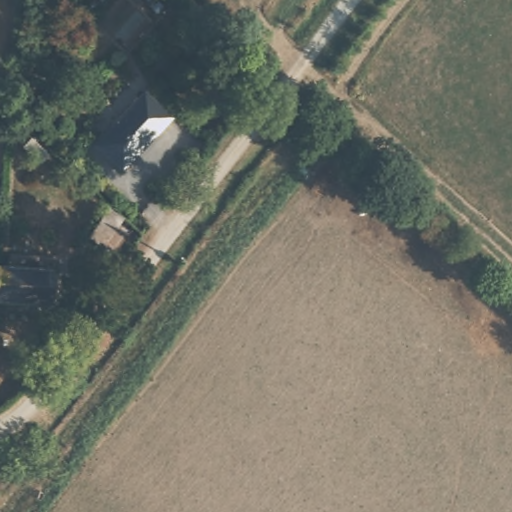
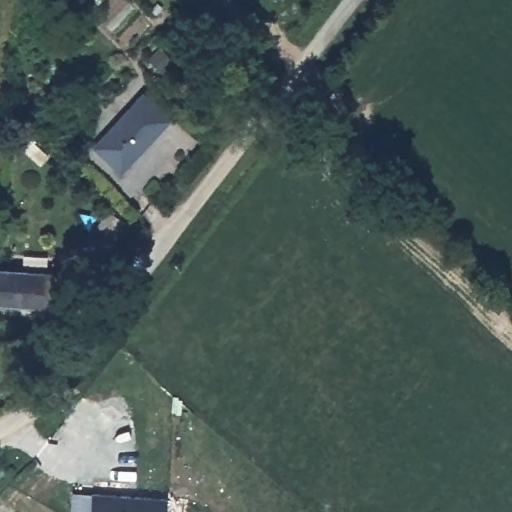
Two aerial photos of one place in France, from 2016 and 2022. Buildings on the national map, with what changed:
unchanged [(120,174),(94,150),(140,100),(166,124),(120,174)]
unchanged [(101,248),(87,239),(107,207),(121,218),(101,248)]
unchanged [(53,268),(51,305),(0,301),(0,264),(53,268)]
new [(166,498),(166,512),(91,512),(92,492),(166,498)]

